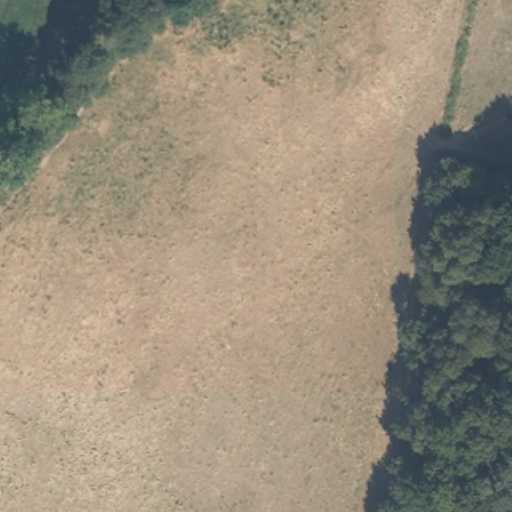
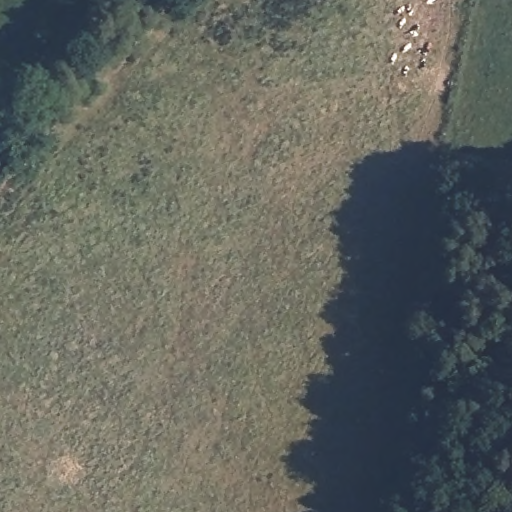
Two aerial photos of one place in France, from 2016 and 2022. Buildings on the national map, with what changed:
[]

